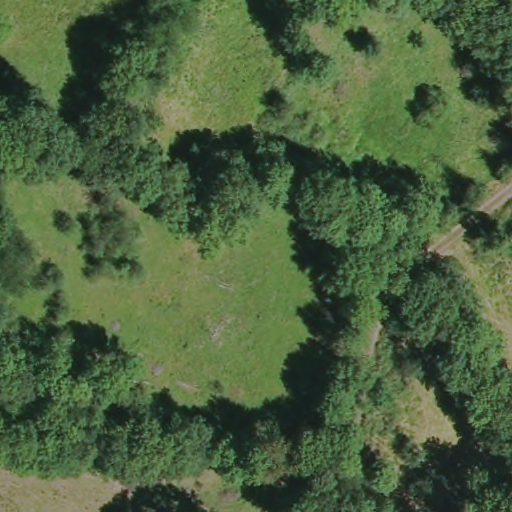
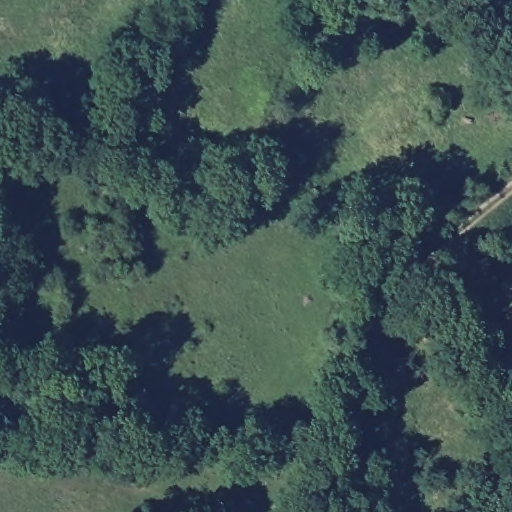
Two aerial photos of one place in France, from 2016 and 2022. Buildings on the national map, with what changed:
[]

